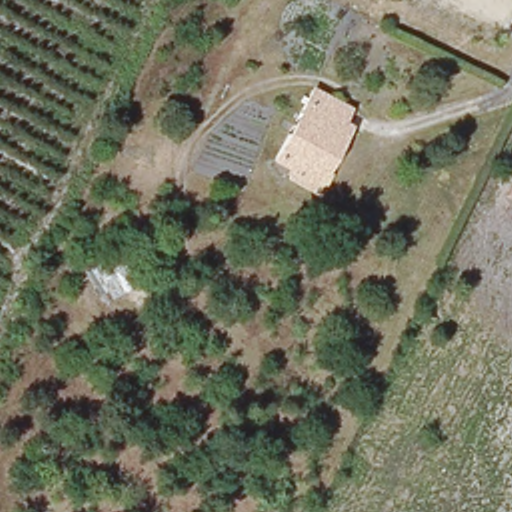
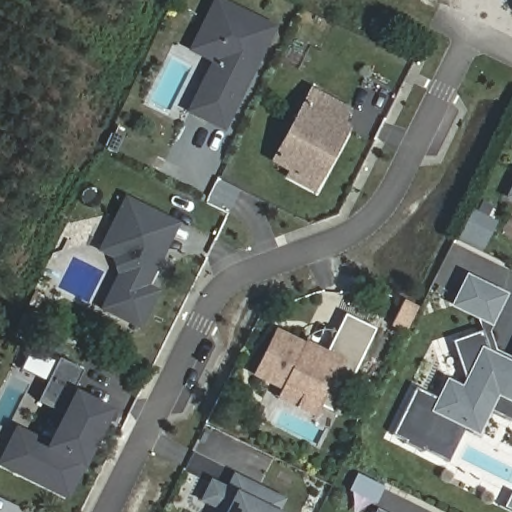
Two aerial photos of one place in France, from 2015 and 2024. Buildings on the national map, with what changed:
new [(224,128),(190,111),(215,61),(192,50),(201,31),(217,0),(273,28),(252,70),(247,82),(224,128)]
unchanged [(302,184),(287,177),(291,170),(273,160),(311,89),(347,109),(340,123),(347,127),(323,171),(313,190),(302,184)]
new [(115,130),(122,134),(112,152),(106,148),(115,130)]
unchanged [(512,192),(512,197),(510,196),(512,192)]
new [(120,273),(114,257),(100,250),(110,229),(126,197),(166,216),(179,223),(166,250),(148,285),(160,291),(141,327),(102,308),(120,273)]
demolished [(133,275),(137,282),(122,291),(104,261),(121,252),(123,255),(149,239),(161,259),(133,275)]
new [(256,373),(278,329),(326,353),(346,313),(377,329),(335,412),(320,405),(315,416),(277,397),(282,386),(256,373)]
new [(392,435),(415,390),(439,402),(448,383),(464,390),(468,381),(455,341),(482,330),(491,355),(512,365),(512,364),(512,419),(511,422),(488,411),(477,431),(452,419),(466,426),(448,463),(440,458),(392,435)]
new [(2,462),(18,430),(50,446),(66,414),(37,400),(59,357),(84,369),(72,392),(109,410),(67,494),(2,462)]
new [(219,507),(203,499),(212,481),(250,500),(227,489),(234,475),(257,486),(282,499),(275,512),(217,512),(218,510),(219,507)]

